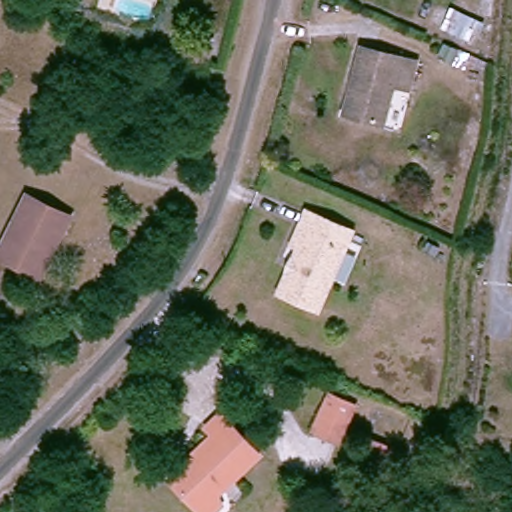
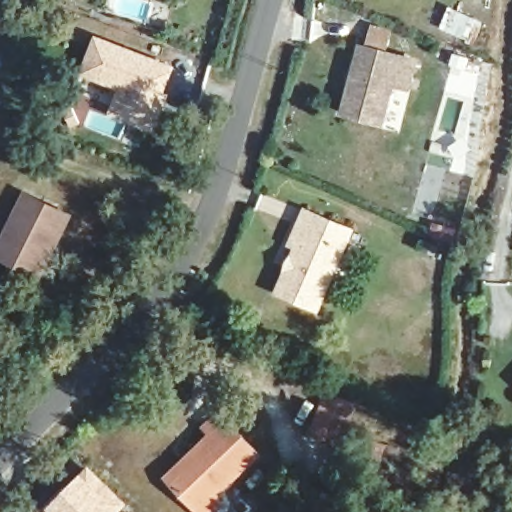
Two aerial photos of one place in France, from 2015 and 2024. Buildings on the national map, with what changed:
unchanged [(477,42),(444,29),(450,11),(485,25),(477,42)]
new [(94,35),(175,66),(151,130),(108,112),(116,90),(79,75),(94,35)]
unchanged [(399,88),(381,85),(370,125),(332,115),(338,94),(343,95),(347,83),(342,81),(351,47),(404,61),(399,88)]
unchanged [(0,246),(26,196),(68,217),(36,278),(0,258),(0,246)]
unchanged [(320,313),(282,296),(301,252),(294,250),(310,213),(355,234),(320,313)]
unchanged [(339,442),(315,430),(330,396),(355,407),(339,442)]
unchanged [(217,512),(205,512),(202,509),(179,486),(173,480),(199,455),(218,434),(210,426),(224,412),(262,450),(218,494),(225,503),(217,512)]
new [(87,465),(127,503),(118,512),(37,512),(87,465)]

